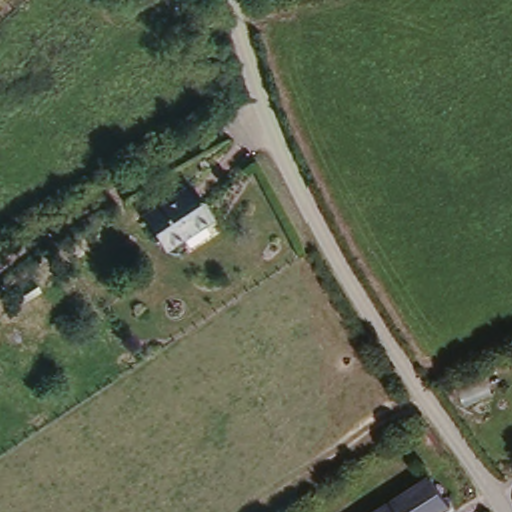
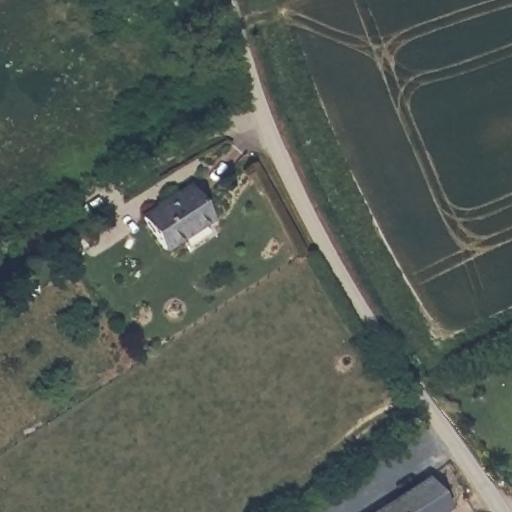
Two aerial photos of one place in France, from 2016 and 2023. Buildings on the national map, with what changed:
unchanged [(188,178),(210,211),(165,241),(143,207),(188,178)]
unchanged [(431,470),(451,501),(433,512),(367,512),(431,470)]

